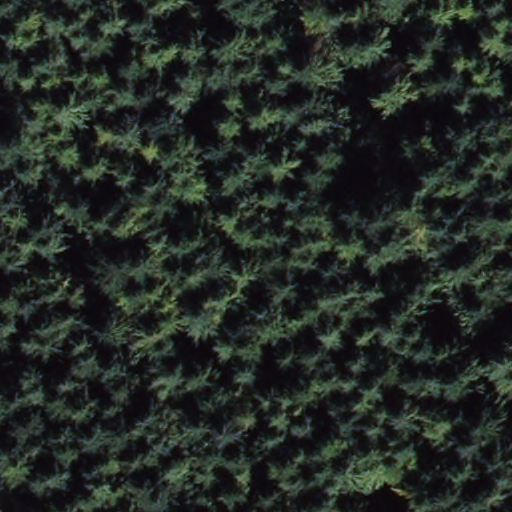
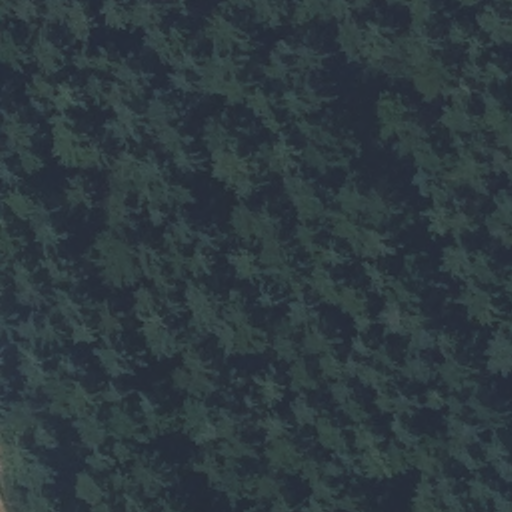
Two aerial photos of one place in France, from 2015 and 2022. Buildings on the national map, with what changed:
[]

